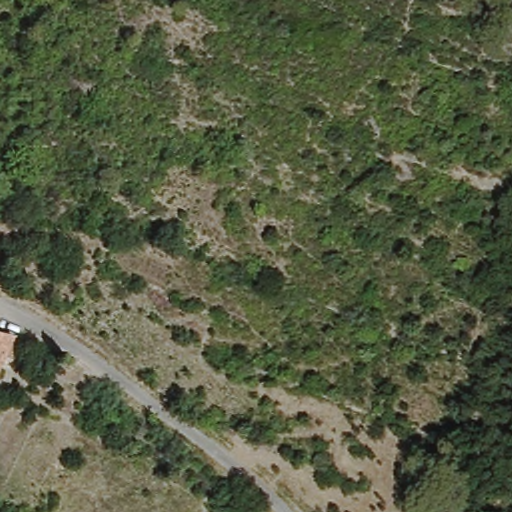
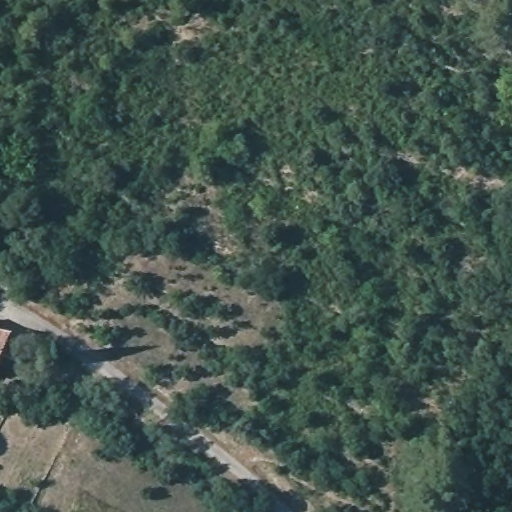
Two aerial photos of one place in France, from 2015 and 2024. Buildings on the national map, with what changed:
unchanged [(22,364),(15,362),(12,369),(5,368),(0,375),(0,339),(28,351),(22,364)]

